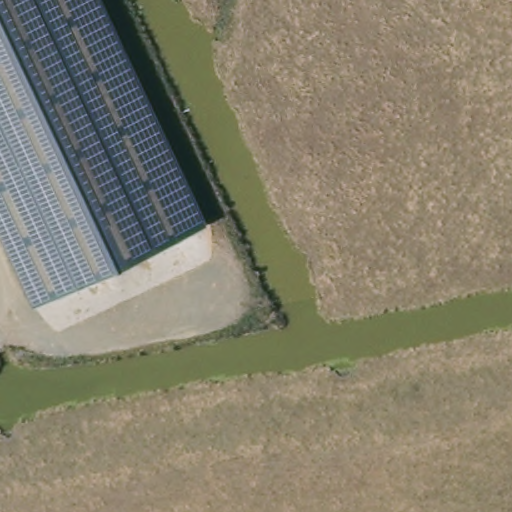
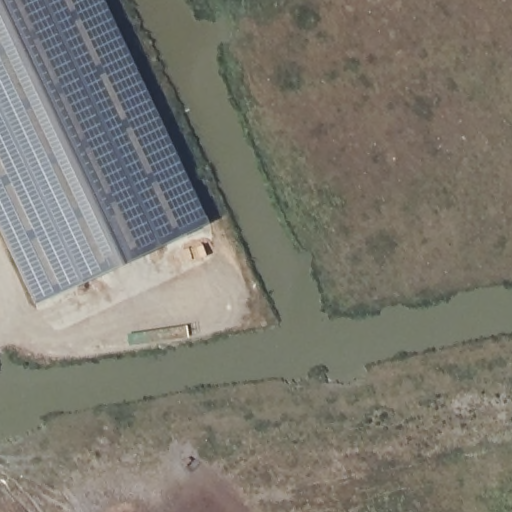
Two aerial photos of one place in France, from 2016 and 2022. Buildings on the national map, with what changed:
unchanged [(0,222),(0,0),(102,0),(207,223),(40,304),(0,222)]

